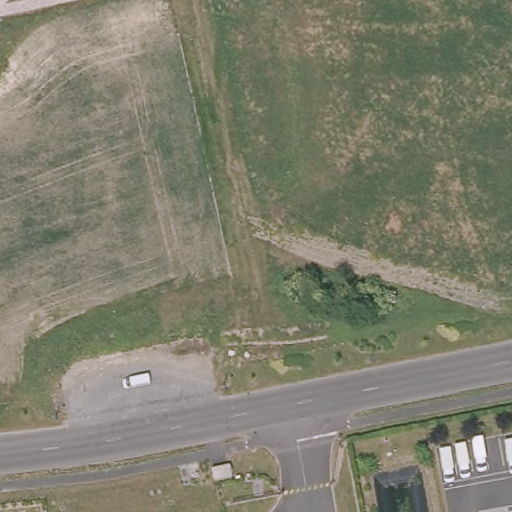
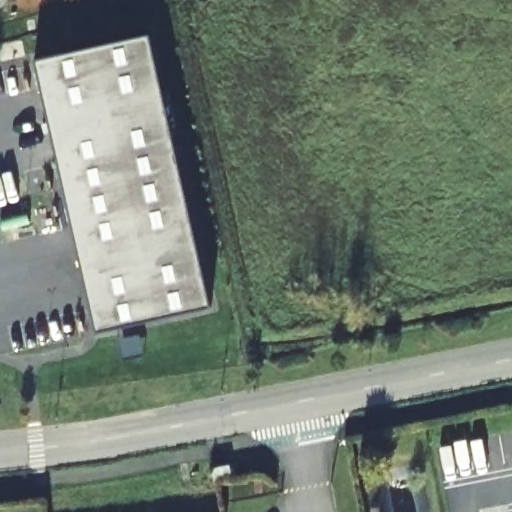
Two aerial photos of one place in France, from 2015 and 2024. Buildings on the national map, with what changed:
new [(212,304),(94,332),(35,59),(146,36),(212,304)]
unchanged [(213,480),(211,468),(229,465),(231,477),(213,480)]

